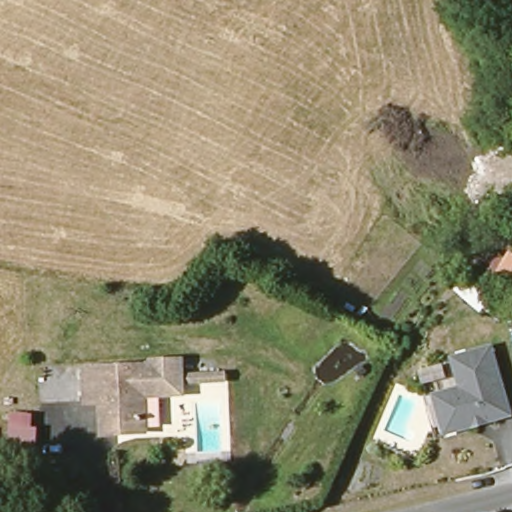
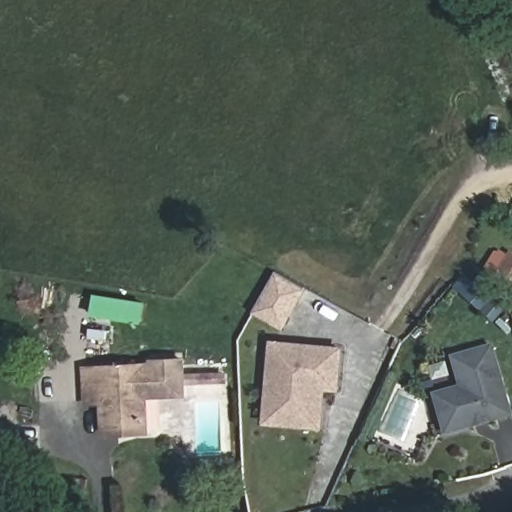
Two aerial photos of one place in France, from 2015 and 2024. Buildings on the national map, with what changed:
unchanged [(512,251),(512,286),(493,275),(507,248),(512,251)]
new [(276,272),(305,288),(290,316),(283,328),(254,311),(261,299),(276,272)]
new [(273,343),(341,349),(337,388),(324,387),(321,426),(282,423),(267,422),(270,382),(273,343)]
unchanged [(503,422),(438,437),(429,400),(457,393),(449,363),(487,354),(503,422)]
unchanged [(126,433),(104,435),(102,402),(86,403),(84,369),(154,364),(153,361),(183,359),(186,393),(145,396),(146,415),(147,432),(126,433)]
unchanged [(39,427),(36,454),(11,454),(11,426),(39,427)]

